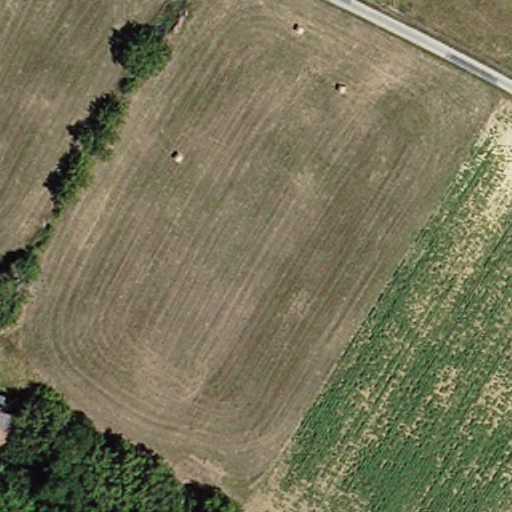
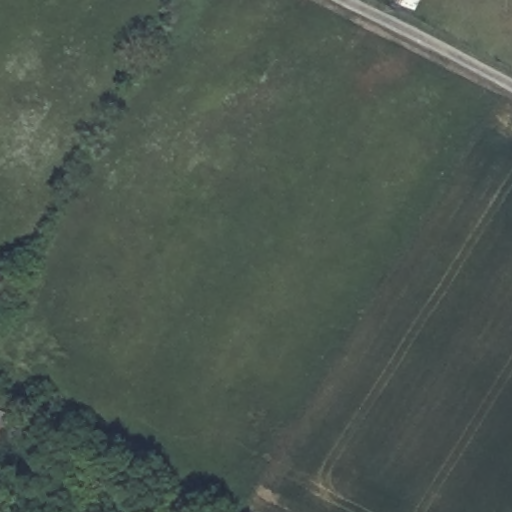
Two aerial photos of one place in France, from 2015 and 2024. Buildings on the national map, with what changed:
unchanged [(15,449),(0,440),(0,388),(17,397),(20,388),(35,395),(27,418),(29,419),(39,424),(24,455),(15,449)]

